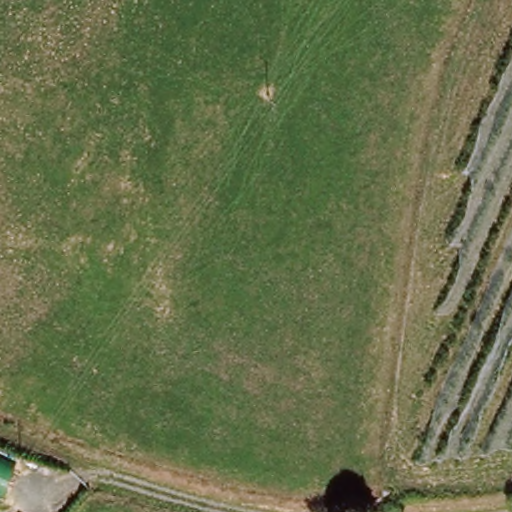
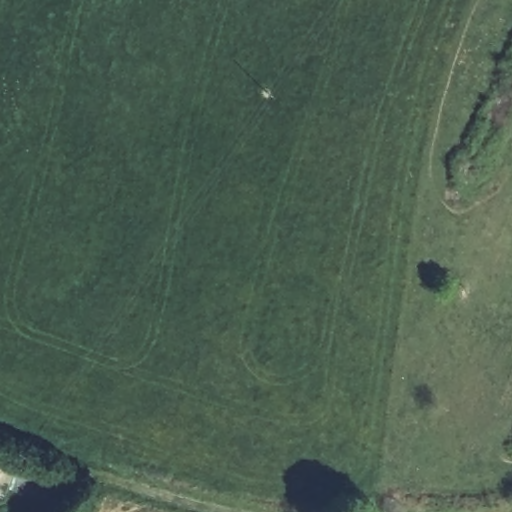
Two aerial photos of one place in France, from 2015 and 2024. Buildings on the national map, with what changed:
unchanged [(0,456),(16,463),(3,498),(0,496),(0,456)]

